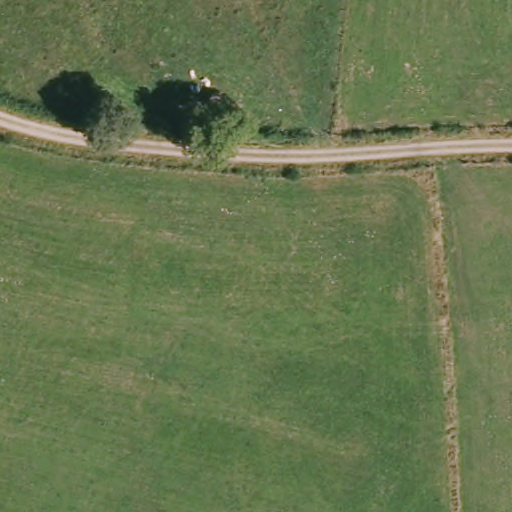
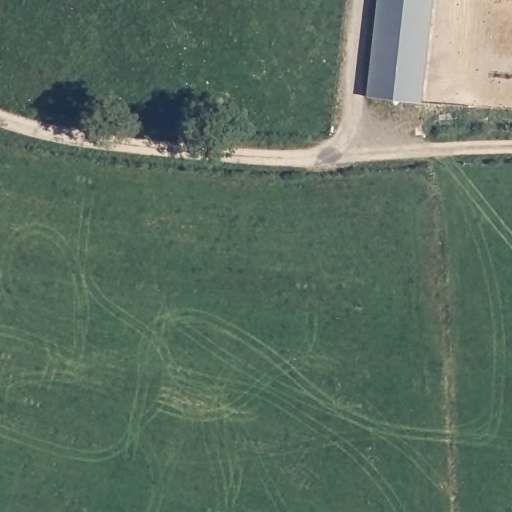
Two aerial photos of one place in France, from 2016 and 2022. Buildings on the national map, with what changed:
new [(434,0),(424,102),(369,95),(380,0),(434,0)]

